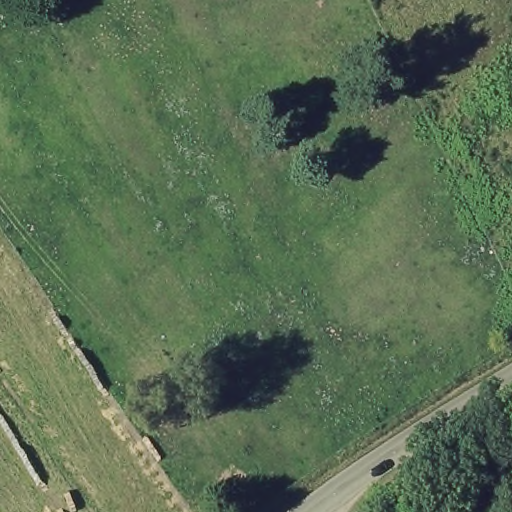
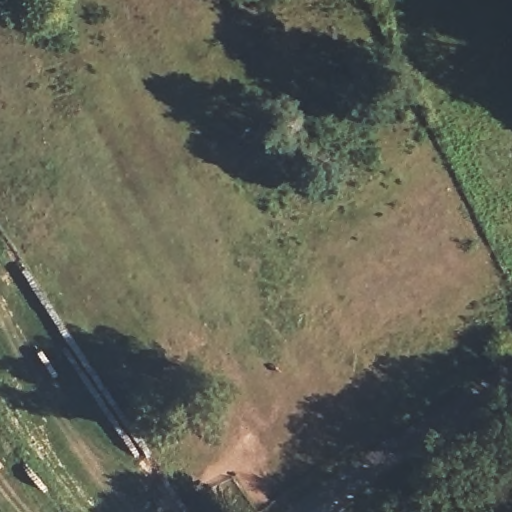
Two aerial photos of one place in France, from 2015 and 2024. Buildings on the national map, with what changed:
[]

